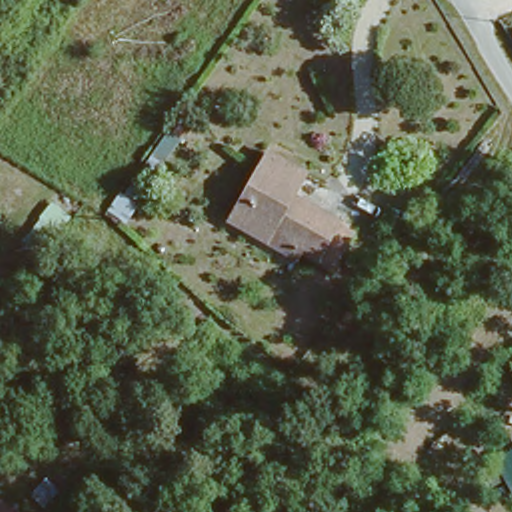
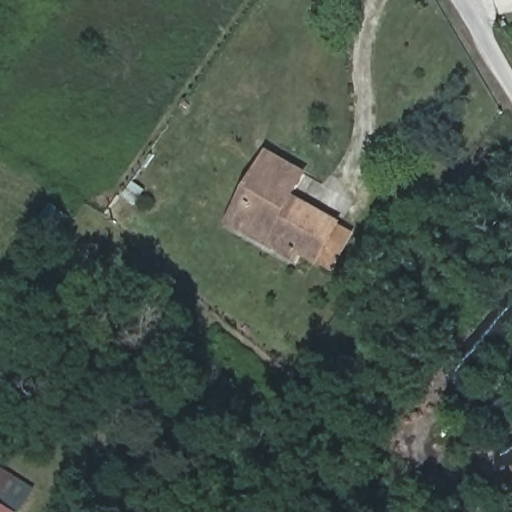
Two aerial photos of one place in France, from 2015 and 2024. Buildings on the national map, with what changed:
unchanged [(254,236),(223,216),(266,147),(302,170),(289,191),(308,203),(329,216),(306,253),(288,241),(281,252),(254,236)]
unchanged [(0,512),(0,500),(15,512),(0,512)]

